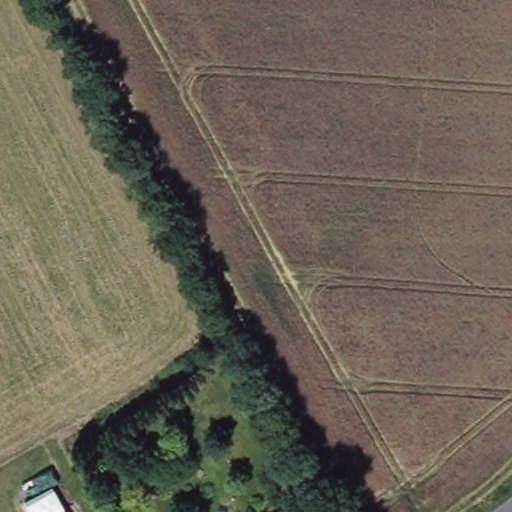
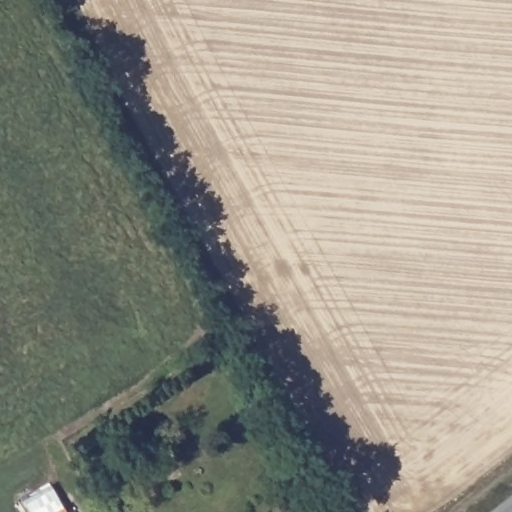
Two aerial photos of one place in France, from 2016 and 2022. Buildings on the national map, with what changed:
unchanged [(56,512),(67,506),(70,512),(56,512)]
unchanged [(296,512),(283,512),(292,506),(296,512)]

